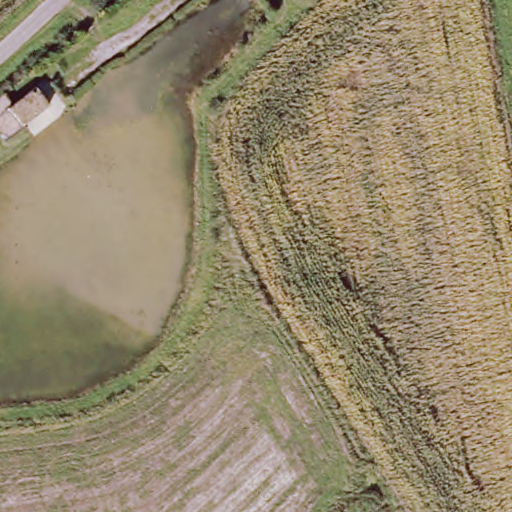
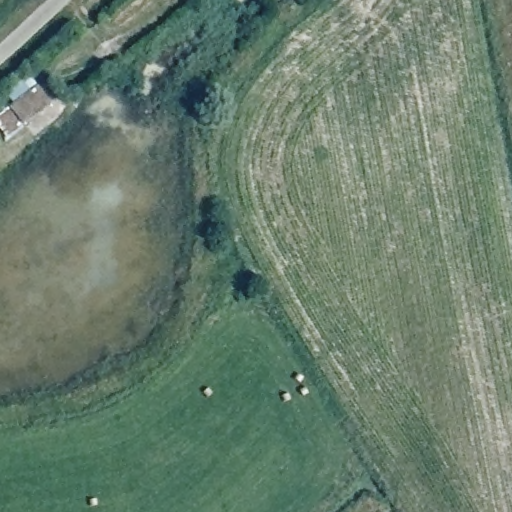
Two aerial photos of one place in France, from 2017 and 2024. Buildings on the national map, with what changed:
unchanged [(14,103),(36,85),(50,104),(23,125),(6,138),(0,130),(0,97),(5,92),(14,103)]

